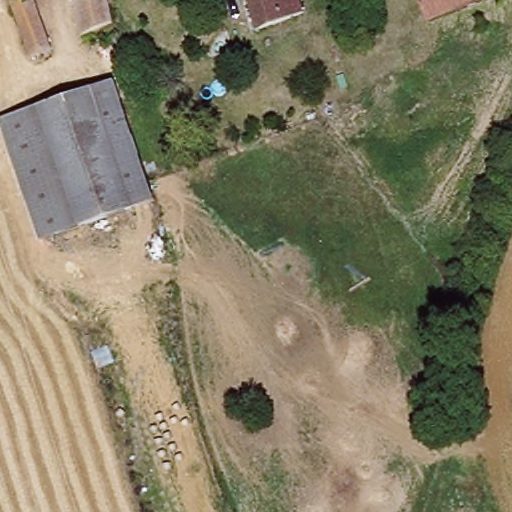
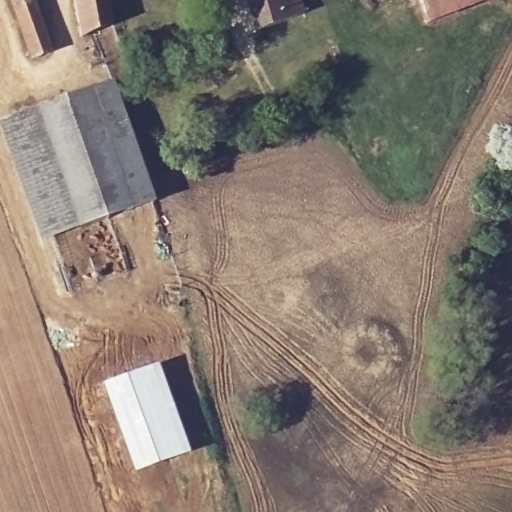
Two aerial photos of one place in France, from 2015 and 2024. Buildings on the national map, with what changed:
unchanged [(31,61),(22,25),(15,0),(34,0),(48,55),(40,59),(31,61)]
unchanged [(80,40),(73,0),(105,0),(107,14),(115,26),(107,30),(80,40)]
unchanged [(296,29),(262,38),(250,0),(288,0),(296,29)]
unchanged [(418,0),(501,0),(427,29),(418,0)]
unchanged [(120,88),(155,209),(70,232),(35,111),(120,88)]
unchanged [(0,142),(0,121),(35,111),(70,232),(28,244),(0,142)]
new [(158,363),(190,453),(133,474),(100,384),(158,363)]

